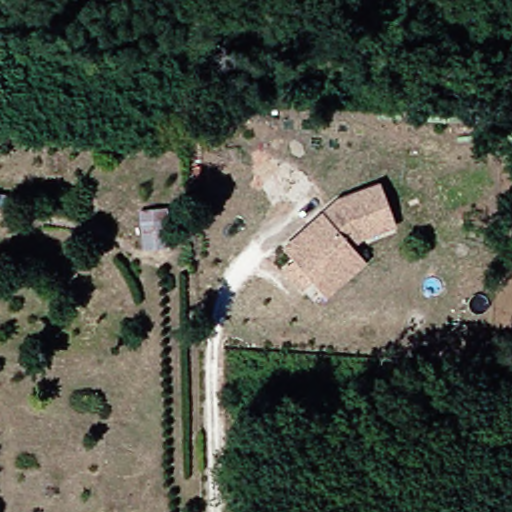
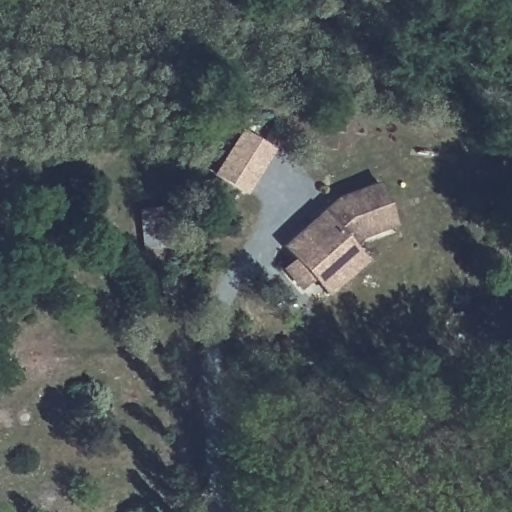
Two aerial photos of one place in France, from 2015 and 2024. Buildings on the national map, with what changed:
new [(247,195),(212,175),(240,130),(275,150),(247,195)]
unchanged [(330,297),(314,280),(302,290),(283,268),(292,258),(283,248),(335,197),(383,180),(397,229),(364,236),(355,245),(369,262),(330,297)]
unchanged [(165,208),(168,245),(143,249),(141,210),(165,208)]

